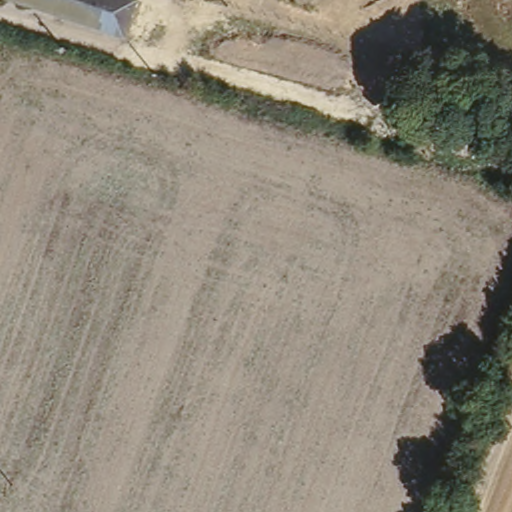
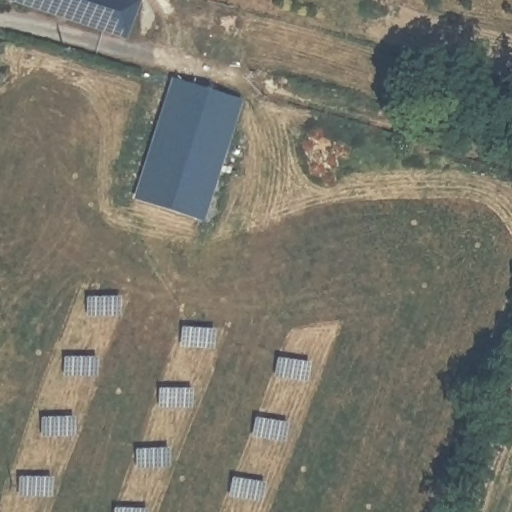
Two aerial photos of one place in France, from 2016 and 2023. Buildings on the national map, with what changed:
unchanged [(19,0),(134,0),(122,39),(19,0)]
new [(238,103),(199,224),(133,204),(171,84),(238,103)]

